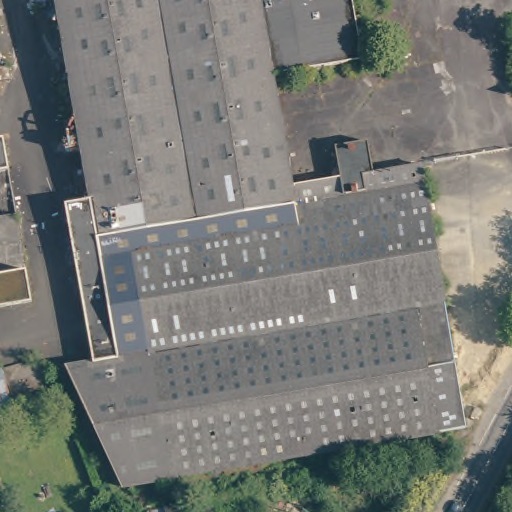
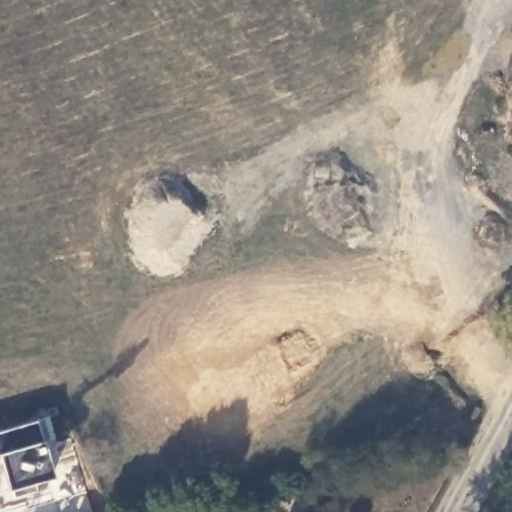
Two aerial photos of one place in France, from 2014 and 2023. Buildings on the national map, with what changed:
demolished [(51,0),(348,0),(352,22),(336,25),(343,63),(272,75),(290,185),(250,192),(89,220),(85,197),(51,0)]
demolished [(0,169),(0,135),(4,135),(10,167),(0,169)]
demolished [(336,177),(331,146),(364,139),(370,172),(336,177)]
demolished [(462,427),(118,488),(62,365),(90,360),(144,351),(135,302),(104,305),(89,220),(250,192),(290,185),(336,177),(370,172),(417,162),(462,427)]
demolished [(60,202),(85,197),(89,220),(104,305),(135,302),(144,351),(90,360),(65,224),(60,202)]
demolished [(21,230),(34,300),(23,302),(0,306),(0,214),(17,211),(21,230)]
unchanged [(258,505),(223,512),(213,512),(210,497),(215,496),(255,489),(258,505)]

